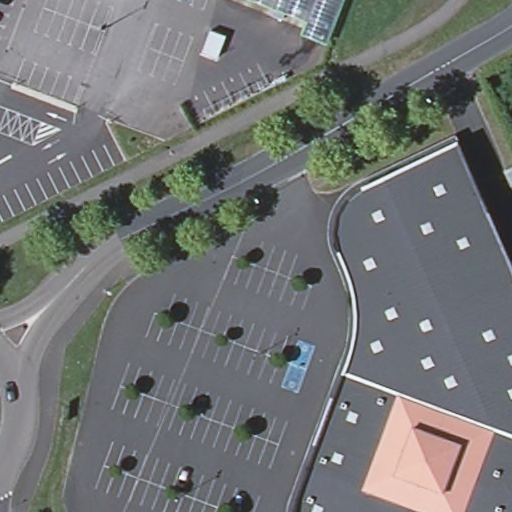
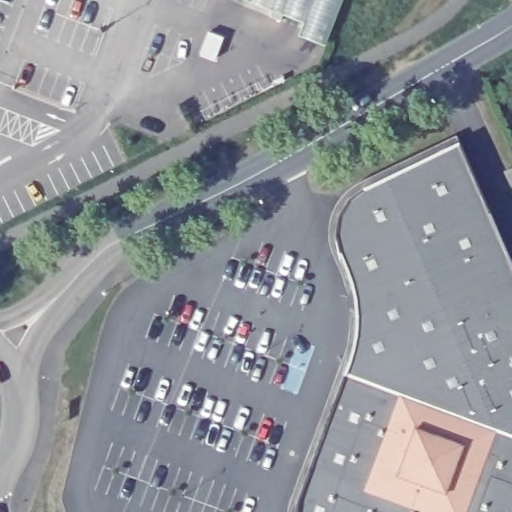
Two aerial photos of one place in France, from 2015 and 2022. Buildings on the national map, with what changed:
unchanged [(512,259),(512,512),(294,512),(296,499),(344,371),(348,359),(355,333),(356,313),(355,295),(351,281),(346,267),(339,250),(335,232),(338,213),(348,197),(363,185),(460,139),(512,259)]
unchanged [(511,185),(504,169),(512,165),(512,185),(511,185)]

